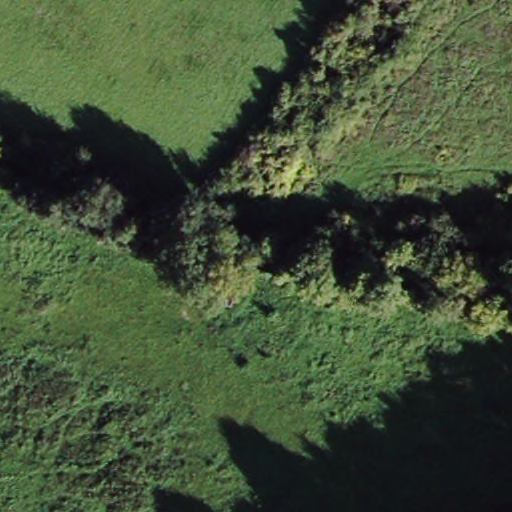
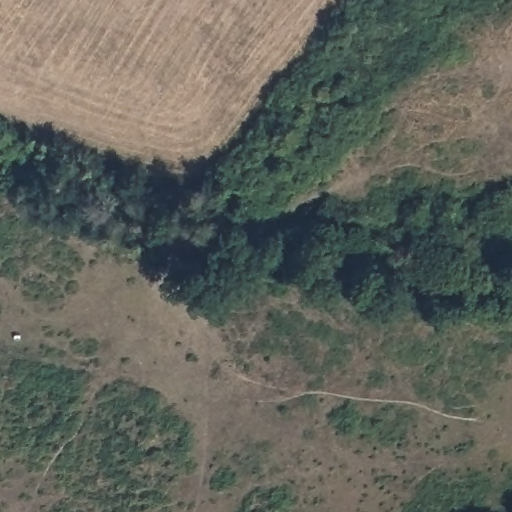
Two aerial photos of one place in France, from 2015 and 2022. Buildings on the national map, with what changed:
unchanged [(248,284),(243,309),(195,304),(200,278),(248,284)]

